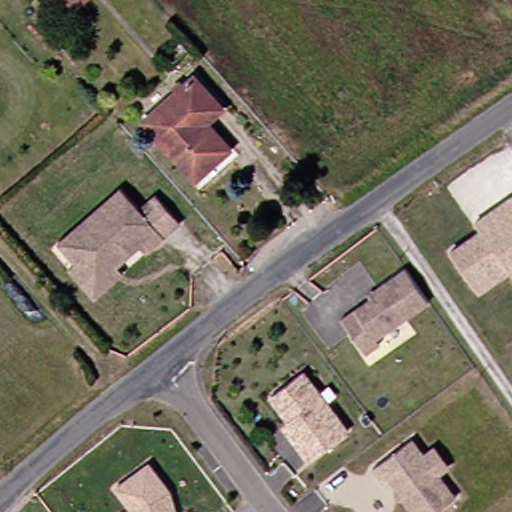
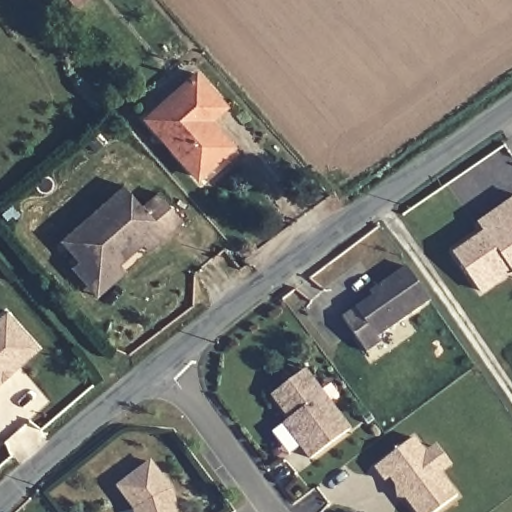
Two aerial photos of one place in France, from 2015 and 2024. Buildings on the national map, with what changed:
unchanged [(82,10),(73,0),(94,0),(82,10)]
unchanged [(224,155),(198,177),(147,120),(197,74),(226,106),(210,120),(233,145),(224,155)]
unchanged [(92,297),(68,268),(75,262),(57,241),(120,186),(139,208),(155,195),(179,223),(145,252),(139,245),(115,265),(122,272),(92,297)]
unchanged [(511,270),(480,292),(452,253),(483,231),(477,222),(500,206),(512,198),(512,271),(511,270)]
unchanged [(430,301),(378,337),(381,343),(367,353),(342,319),(381,291),(378,287),(406,267),(430,301)]
new [(39,349),(12,372),(3,380),(0,383),(0,322),(8,315),(39,349)]
unchanged [(270,401),(303,376),(347,435),(310,464),(299,450),(282,428),(288,424),(270,401)]
unchanged [(423,458),(432,450),(447,465),(438,474),(458,496),(454,500),(441,512),(415,512),(389,485),(385,488),(373,475),(409,442),(417,451),(423,458)]
unchanged [(115,489),(146,462),(169,489),(175,508),(176,512),(133,512),(131,508),(115,489)]

